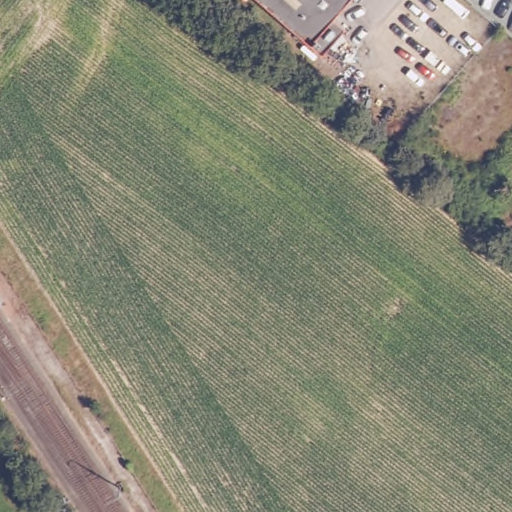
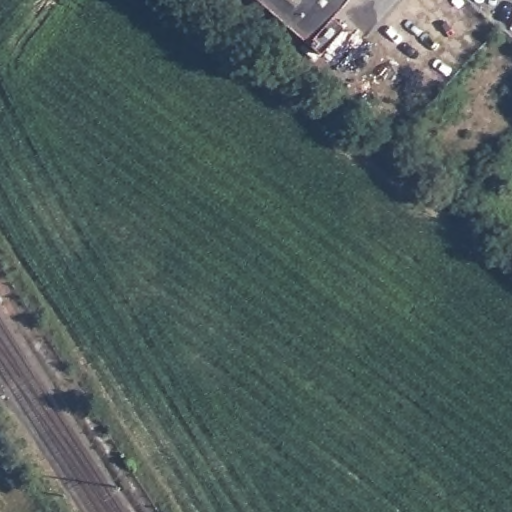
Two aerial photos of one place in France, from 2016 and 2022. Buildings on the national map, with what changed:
unchanged [(350,0),(340,11),(350,21),(327,49),(269,0),(350,0)]

